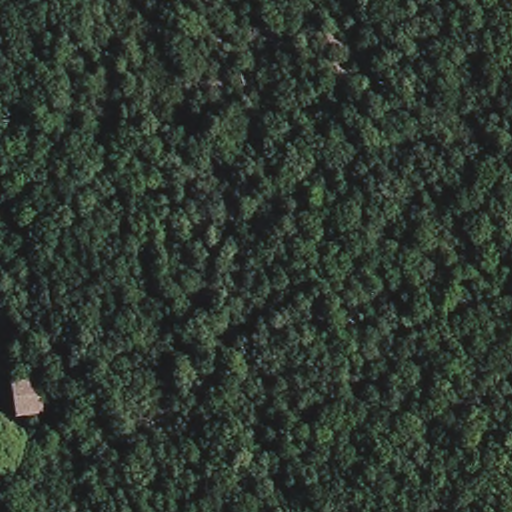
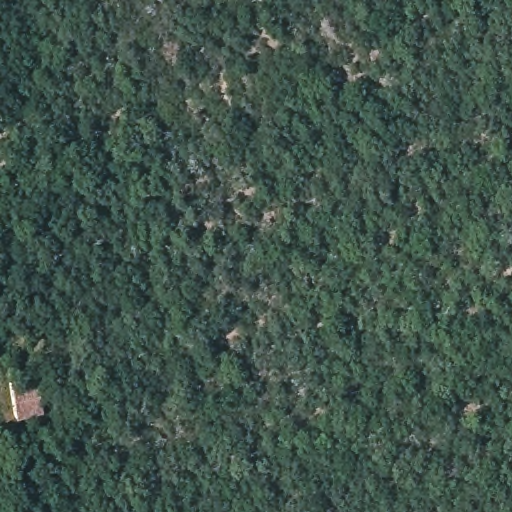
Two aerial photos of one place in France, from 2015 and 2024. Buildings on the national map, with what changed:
unchanged [(39,375),(48,413),(34,418),(31,412),(18,415),(11,381),(18,379),(39,375)]

